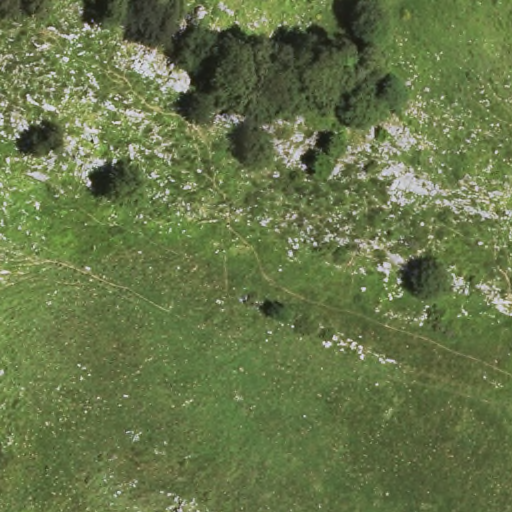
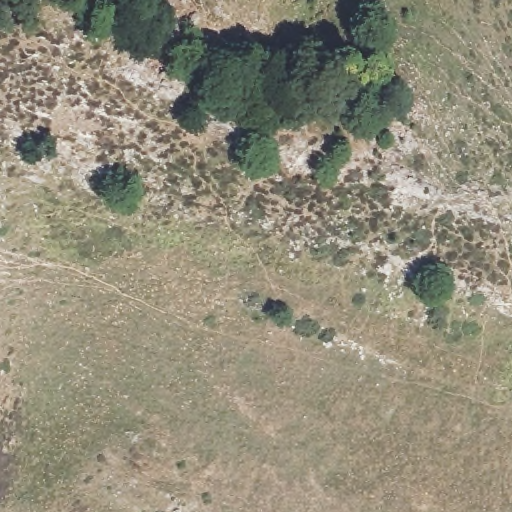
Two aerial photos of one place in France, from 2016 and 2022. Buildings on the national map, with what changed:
[]

